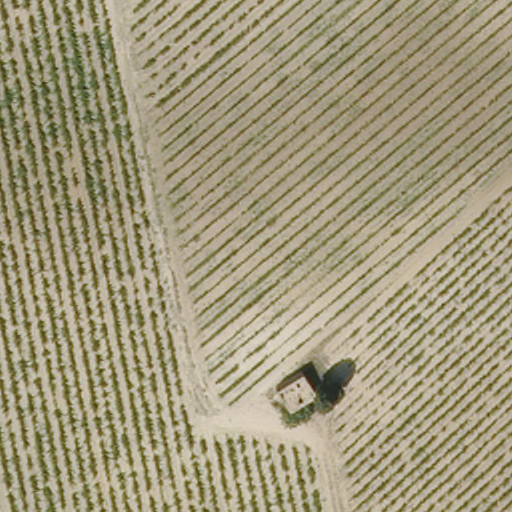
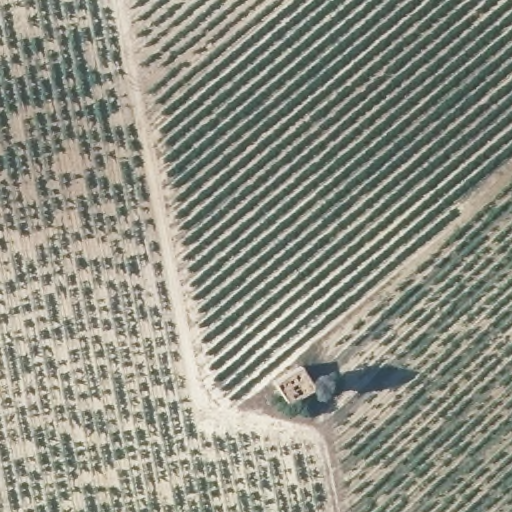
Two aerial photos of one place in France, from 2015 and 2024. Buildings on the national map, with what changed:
unchanged [(277,384),(303,368),(315,389),(312,391),(304,395),(290,404),(277,384)]

